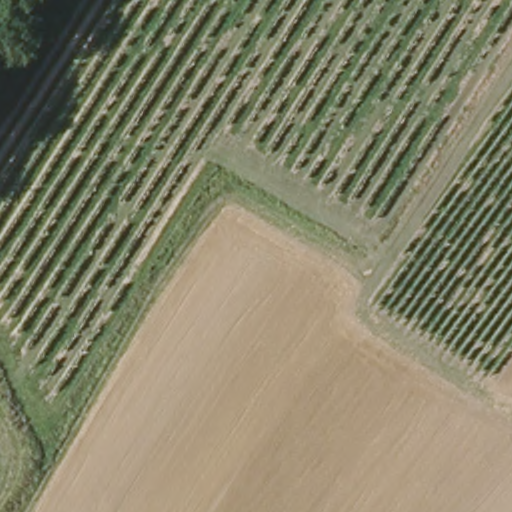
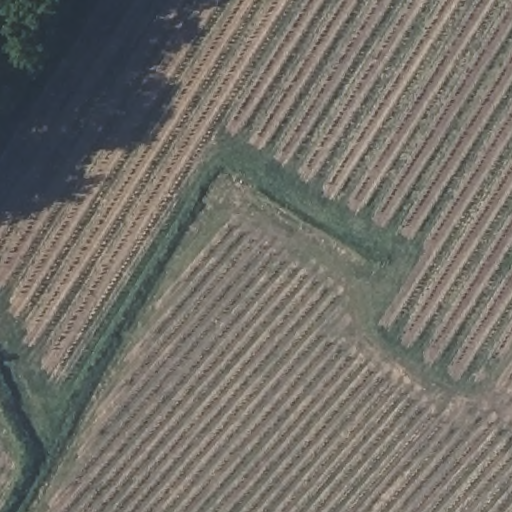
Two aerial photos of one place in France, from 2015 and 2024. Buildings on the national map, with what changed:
[]

